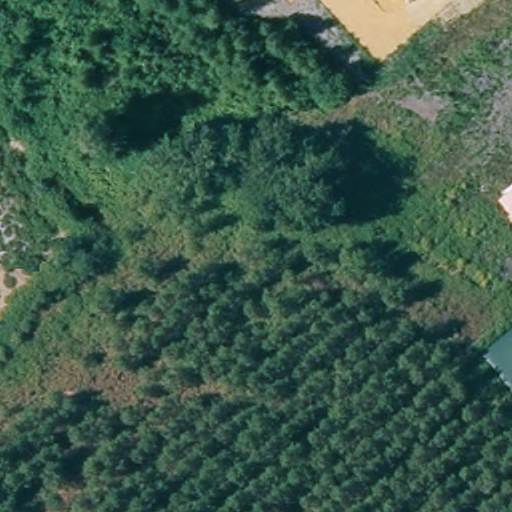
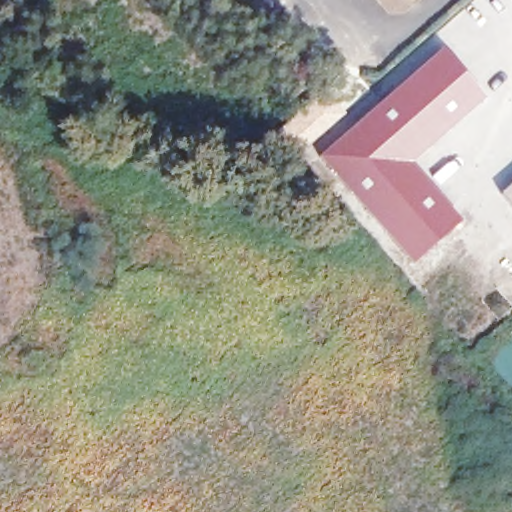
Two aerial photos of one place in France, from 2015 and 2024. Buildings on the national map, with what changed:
new [(411,263),(319,156),(442,48),(485,95),(411,162),(462,220),(411,263)]
unchanged [(500,194),(512,184),(512,208),(500,194)]

